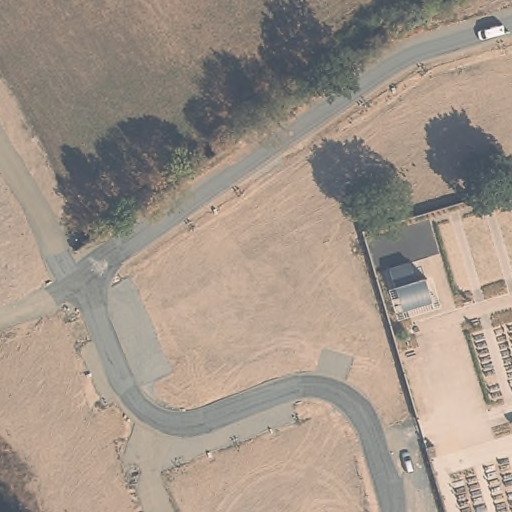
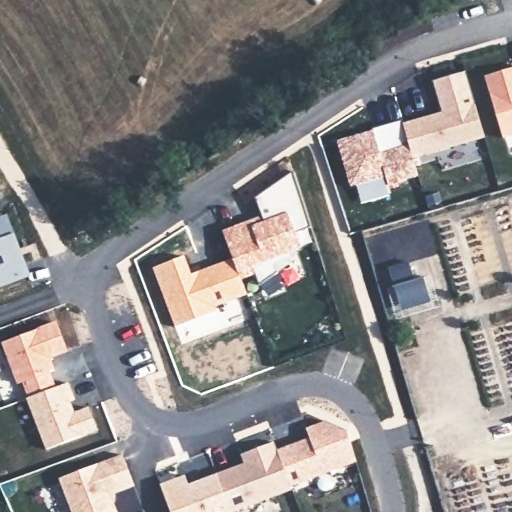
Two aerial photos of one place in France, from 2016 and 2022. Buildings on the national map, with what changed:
unchanged [(502,137),(485,76),(512,68),(512,135),(502,137)]
new [(484,138),(415,158),(419,176),(385,184),(382,177),(350,185),(336,140),(440,109),(433,80),(465,70),(484,138)]
new [(183,257),(190,275),(233,260),(222,230),(263,216),(256,198),(290,173),(308,225),(295,231),(300,248),(295,250),(297,261),(257,285),(255,274),(239,280),(244,292),(212,305),(215,313),(175,329),(153,268),(183,257)]
new [(437,303),(407,312),(400,288),(395,269),(415,262),(421,282),(430,279),(437,303)]
new [(56,321),(69,352),(51,358),(55,368),(49,371),(54,386),(70,381),(76,397),(69,399),(73,411),(89,406),(97,429),(44,448),(21,383),(16,385),(1,343),(56,321)]
new [(293,490),(232,512),(170,512),(159,484),(185,474),(189,484),(243,463),(240,454),(273,441),(276,449),(310,437),(305,428),(323,421),(348,432),(350,437),(357,461),(291,485),(293,490)]
unchanged [(113,495),(119,512),(72,512),(59,479),(123,455),(136,487),(113,495)]

